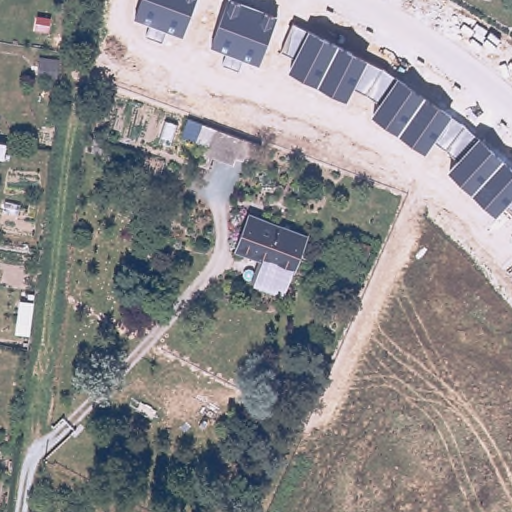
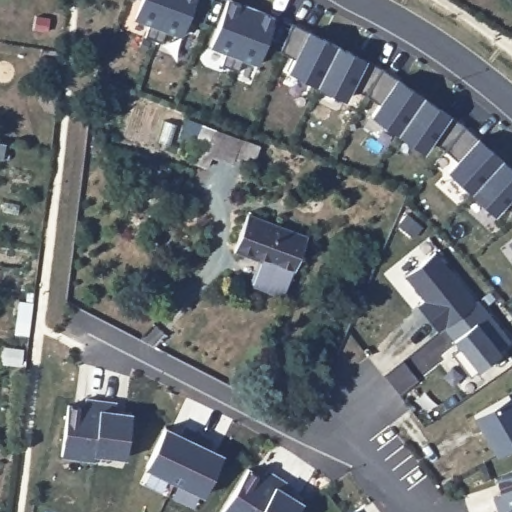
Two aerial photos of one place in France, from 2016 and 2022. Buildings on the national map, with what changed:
unchanged [(161,42),(144,38),(149,24),(136,20),(142,0),(196,0),(182,36),(167,31),(161,42)]
unchanged [(234,0),(277,17),(257,65),(244,59),(239,70),(222,65),(225,52),(211,47),(231,0),(234,0)]
unchanged [(465,125),(512,169),(512,209),(506,204),(496,214),(448,170),(457,161),(432,140),(426,151),(372,114),(379,104),(368,94),(354,87),(348,99),(290,72),(295,57),(281,52),(294,24),(381,67),(465,125)]
unchanged [(256,144),(246,169),(192,154),(199,124),(256,144)]
unchanged [(13,142),(10,159),(0,157),(0,140),(13,142)]
unchanged [(254,277),(266,256),(240,243),(256,214),(311,241),(296,271),(294,270),(283,292),(254,277)]
unchanged [(418,306),(425,300),(405,277),(435,251),(476,303),(440,332),(418,306)]
new [(509,343),(499,354),(479,371),(470,377),(452,356),(461,351),(453,342),(457,338),(444,328),(476,303),(509,343)]
new [(512,402),(512,444),(496,453),(473,415),(508,395),(512,402)]
new [(65,405),(81,407),(82,398),(96,400),(90,452),(89,458),(58,455),(65,405)]
new [(96,400),(112,402),(111,411),(128,412),(122,457),(90,452),(96,400)]
new [(164,427),(179,435),(183,427),(197,433),(174,481),(145,467),(164,427)]
new [(197,433),(210,440),(207,447),(222,455),(203,495),(174,481),(197,433)]
new [(248,467),(262,476),(267,469),(280,477),(258,512),(224,512),(221,510),(248,467)]
new [(495,477),(512,472),(512,506),(498,511),(493,497),(500,493),(495,477)]
new [(280,477),(292,485),(288,492),(302,501),(295,512),(258,512),(280,477)]
new [(512,512),(498,512),(498,511),(512,506),(512,512)]

